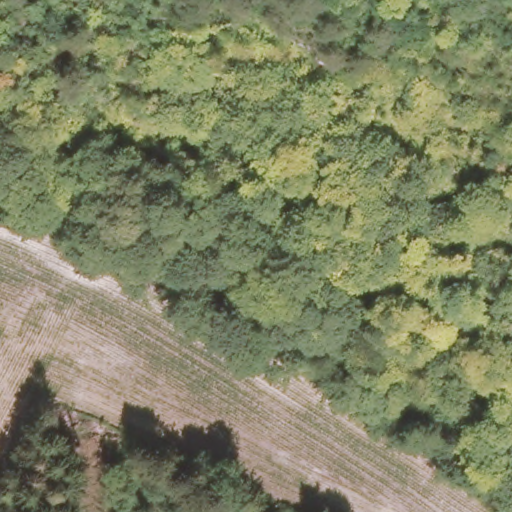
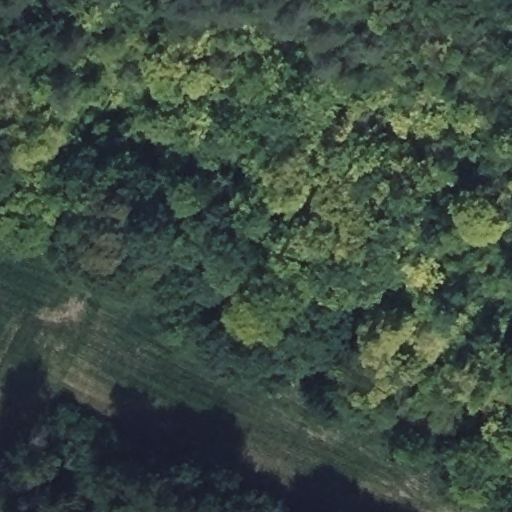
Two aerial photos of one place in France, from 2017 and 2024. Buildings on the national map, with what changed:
unchanged [(206,235),(211,230),(221,230),(226,236),(226,245),(218,250),(208,248),(206,235)]
unchanged [(300,301),(296,290),(302,282),(313,282),(317,290),(315,299),(305,305),(300,301)]
unchanged [(299,365),(236,326),(239,320),(246,307),(311,342),(301,360),(299,365)]
unchanged [(512,473),(509,469),(509,464),(511,460),(512,459),(512,473)]

